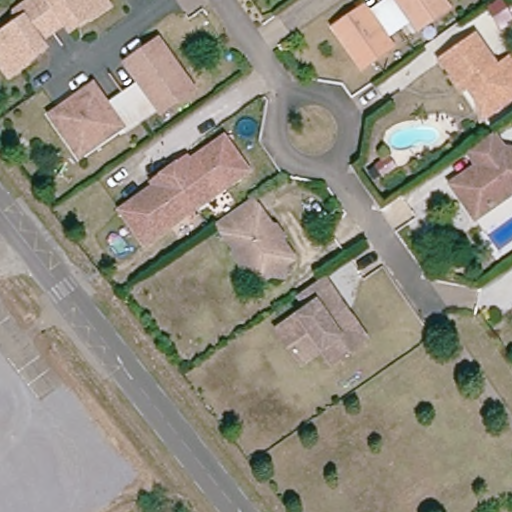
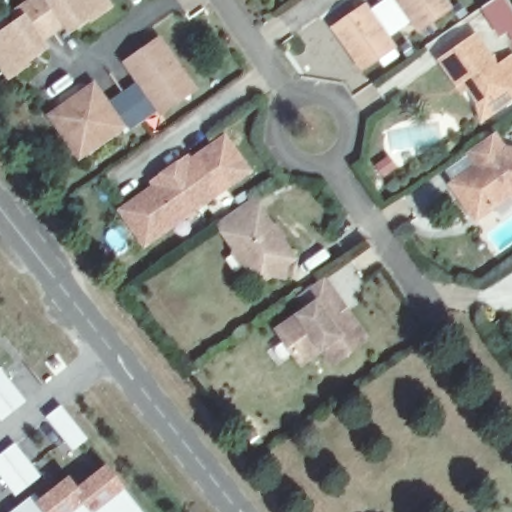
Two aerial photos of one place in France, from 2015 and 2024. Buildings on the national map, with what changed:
unchanged [(104,0),(110,9),(73,32),(67,32),(60,24),(48,32),(27,2),(31,0),(104,0)]
unchanged [(415,30),(408,22),(395,30),(377,5),(383,0),(442,0),(447,7),(415,30)]
unchanged [(35,40),(43,51),(20,66),(23,70),(8,80),(4,78),(0,72),(0,33),(7,27),(10,14),(15,10),(27,2),(48,32),(35,40)]
unchanged [(395,30),(383,39),(390,47),(357,71),(327,31),(361,7),(366,12),(377,5),(395,30)]
unchanged [(477,119),(475,116),(473,99),(471,95),(465,87),(457,92),(451,83),(434,60),(471,34),(492,62),(508,50),(512,55),(512,97),(482,118),(477,119)]
unchanged [(160,114),(155,107),(138,120),(120,94),(136,82),(122,62),(153,40),(182,80),(190,91),(160,114)]
unchanged [(71,158),(64,148),(44,121),(45,117),(87,87),(102,106),(120,94),(138,120),(120,133),(116,127),(85,150),(75,157),(71,158)]
unchanged [(473,215),(466,205),(452,185),(452,182),(477,165),(468,152),(493,134),(501,145),(512,147),(512,190),(511,190),(490,205),(476,215),(473,215)]
unchanged [(186,160),(189,165),(225,137),(247,167),(247,172),(198,207),(173,170),(186,160)]
unchanged [(198,207),(148,244),(143,244),(121,215),(122,212),(159,186),(156,181),(173,170),(198,207)]
unchanged [(217,226),(252,201),(252,202),(294,261),(288,265),(285,280),(270,277),(264,282),(252,266),(245,272),(234,257),(238,255),(217,226)]
unchanged [(323,346),(303,359),(280,326),(309,306),(302,293),(325,277),(365,336),(344,351),(332,360),(323,346)]
new [(1,418),(0,417),(0,367),(26,399),(1,418)]
new [(14,493),(0,474),(0,452),(14,442),(40,475),(14,493)]
new [(34,492),(40,497),(69,473),(76,483),(105,462),(124,485),(144,512),(8,512),(34,492)]

